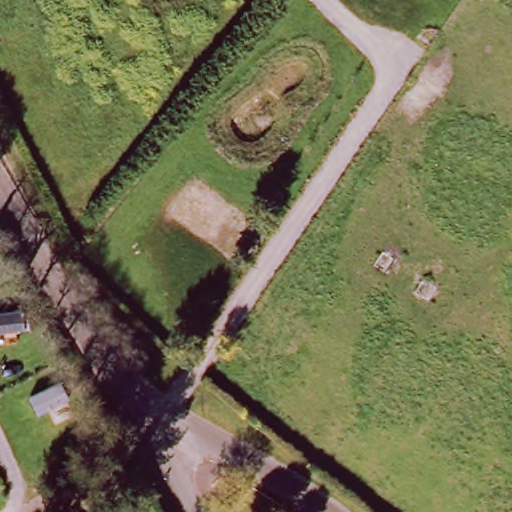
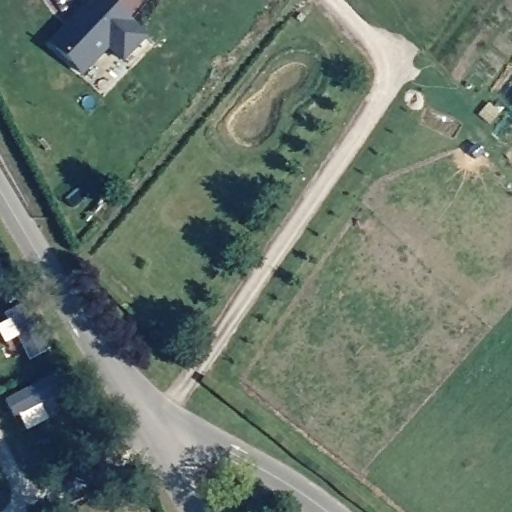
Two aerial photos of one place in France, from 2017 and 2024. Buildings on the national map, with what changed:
new [(107,0),(148,36),(122,63),(108,50),(83,76),(47,42),(88,0),(107,0)]

